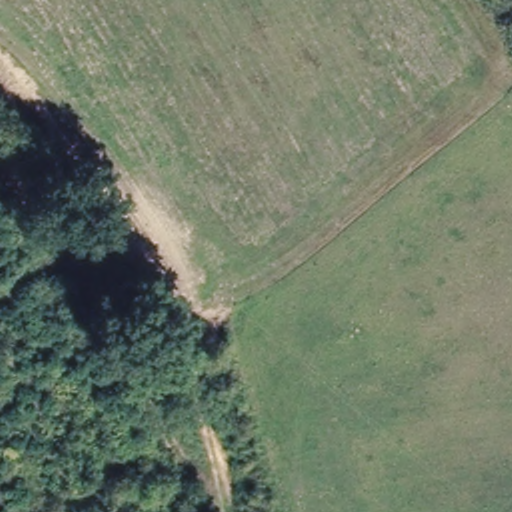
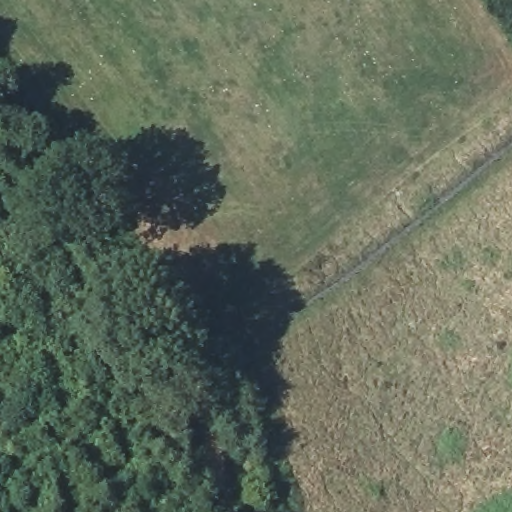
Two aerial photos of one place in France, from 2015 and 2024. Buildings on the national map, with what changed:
[]

